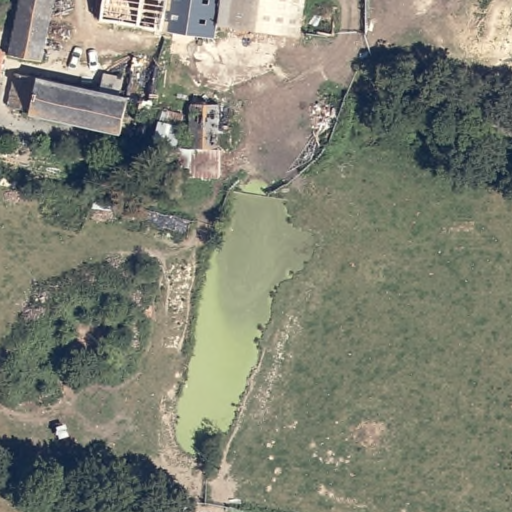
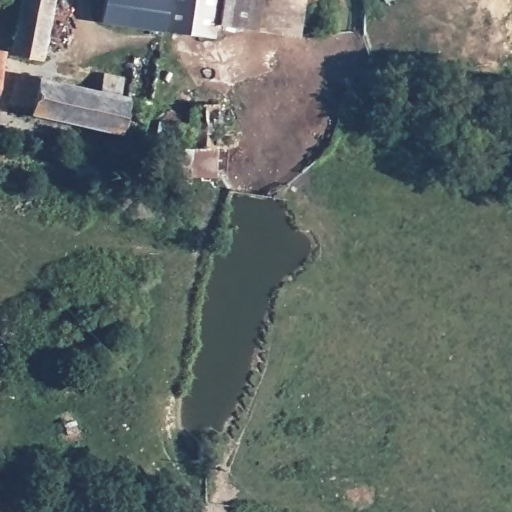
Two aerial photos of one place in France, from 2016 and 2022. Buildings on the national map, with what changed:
unchanged [(45,62),(12,55),(27,0),(60,0),(45,62)]
unchanged [(107,0),(312,0),(310,11),(343,17),(337,44),(224,30),(221,45),(104,25),(107,0)]
unchanged [(7,56),(0,86),(0,55),(7,56)]
unchanged [(168,60),(155,125),(137,121),(134,136),(37,116),(37,111),(17,107),(24,76),(44,80),(109,93),(112,76),(131,80),(129,97),(135,99),(143,56),(168,60)]
unchanged [(164,161),(163,142),(189,143),(189,117),(215,116),(215,142),(230,142),(230,159),(217,159),(217,192),(189,193),(189,184),(189,160),(164,161)]

